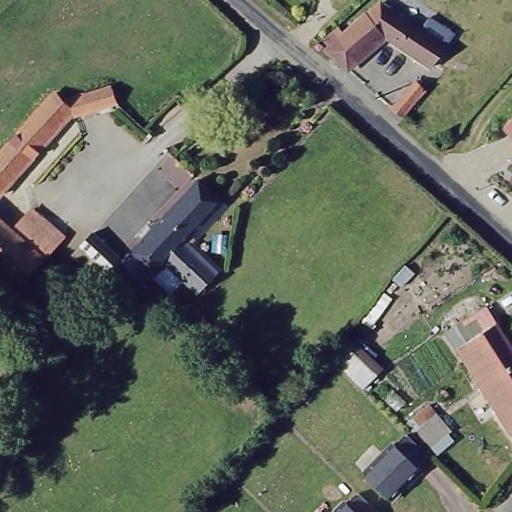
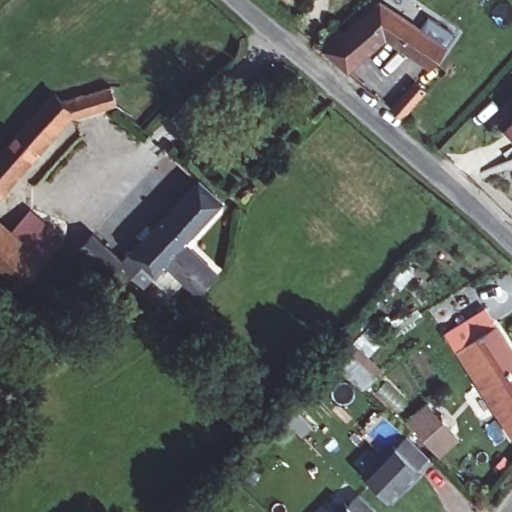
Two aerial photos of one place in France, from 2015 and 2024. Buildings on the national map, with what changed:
unchanged [(327,26),(335,33),(371,0),(384,0),(449,45),(430,70),(385,37),(347,70),(312,40),(327,26)]
unchanged [(419,74),(432,85),(403,116),(390,104),(419,74)]
unchanged [(57,97),(106,82),(115,105),(67,121),(0,195),(0,144),(47,89),(57,97)]
unchanged [(512,111),(512,136),(499,123),(512,111)]
unchanged [(172,153),(177,159),(192,171),(184,180),(164,161),(172,153)]
unchanged [(93,230),(122,257),(197,177),(210,188),(223,200),(187,240),(202,255),(218,271),(212,278),(198,293),(167,265),(165,263),(155,275),(152,273),(138,288),(132,283),(116,267),(109,274),(77,246),(93,230)]
unchanged [(30,199),(67,233),(9,296),(0,289),(0,214),(12,225),(30,199)]
unchanged [(512,354),(512,430),(509,432),(472,375),(473,374),(481,368),(485,365),(465,333),(455,317),(470,307),(480,302),(512,354)]
unchanged [(197,309),(260,367),(245,383),(182,325),(197,309)]
unchanged [(408,418),(432,400),(452,431),(432,446),(408,418)]
unchanged [(394,443),(397,446),(407,435),(429,455),(419,466),(422,468),(392,500),(365,475),(394,443)]
unchanged [(350,505),(360,493),(380,512),(338,512),(347,502),(350,505)]

